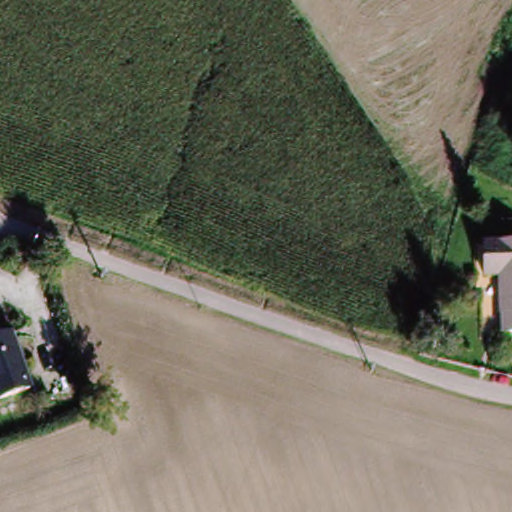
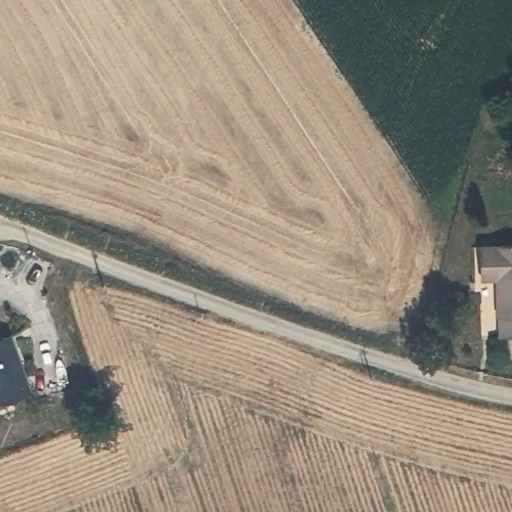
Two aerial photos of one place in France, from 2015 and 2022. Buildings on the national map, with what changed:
unchanged [(512,335),(505,335),(504,316),(497,317),(497,275),(485,277),(483,241),(512,240),(512,335)]
unchanged [(31,389),(0,400),(0,339),(12,336),(31,389)]

